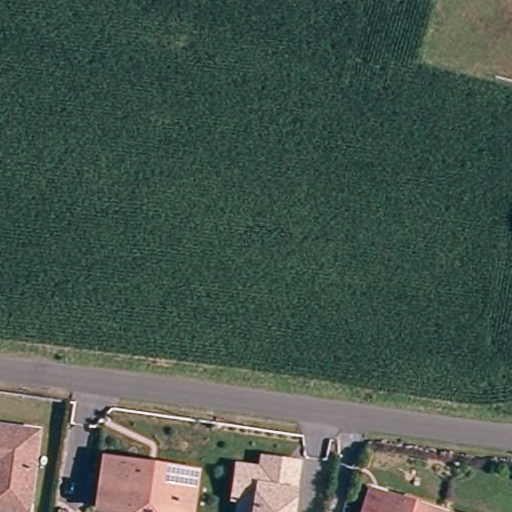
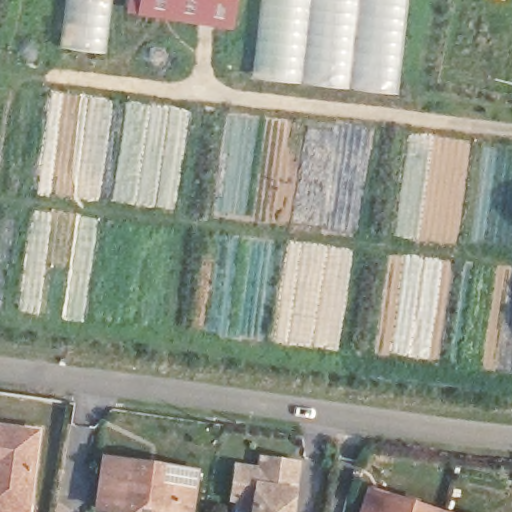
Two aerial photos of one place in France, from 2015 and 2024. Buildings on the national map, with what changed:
new [(111,0),(105,53),(59,46),(64,0),(111,0)]
new [(239,0),(234,29),(125,11),(127,0),(239,0)]
new [(407,0),(397,92),(251,75),(260,0),(407,0)]
unchanged [(19,512),(0,512),(0,433),(27,436),(19,512)]
unchanged [(238,491),(231,490),(232,478),(235,459),(259,462),(260,450),(294,455),(287,512),(235,512),(238,491)]
unchanged [(96,507),(103,458),(199,472),(195,498),(193,512),(123,512),(96,507)]
unchanged [(367,485),(442,510),(450,512),(358,512),(367,485)]

